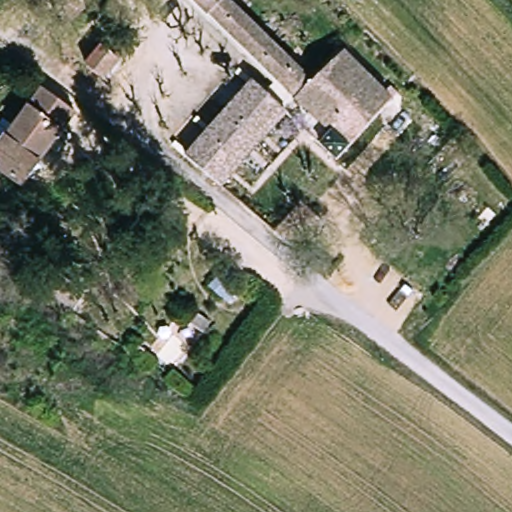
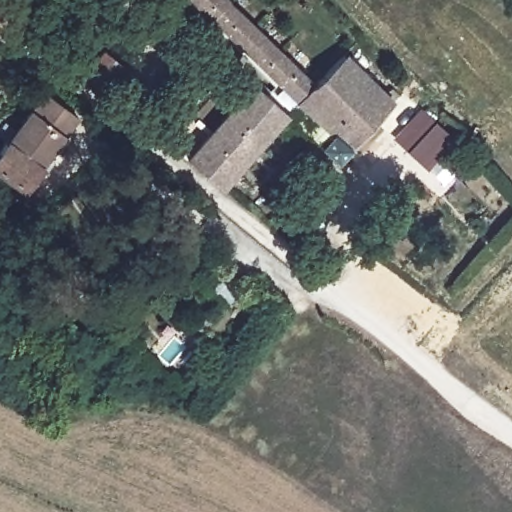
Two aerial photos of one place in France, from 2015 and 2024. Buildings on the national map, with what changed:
unchanged [(350,45),(397,92),(345,150),(293,105),(231,181),(195,152),(268,64),(207,0),(243,0),(319,79),(350,45)]
unchanged [(102,50),(121,65),(106,83),(87,67),(102,50)]
unchanged [(82,117),(35,188),(0,165),(0,156),(43,91),(82,117)]
new [(421,109),(452,137),(423,168),(392,140),(421,109)]
unchanged [(454,169),(438,152),(446,143),(463,160),(454,169)]

